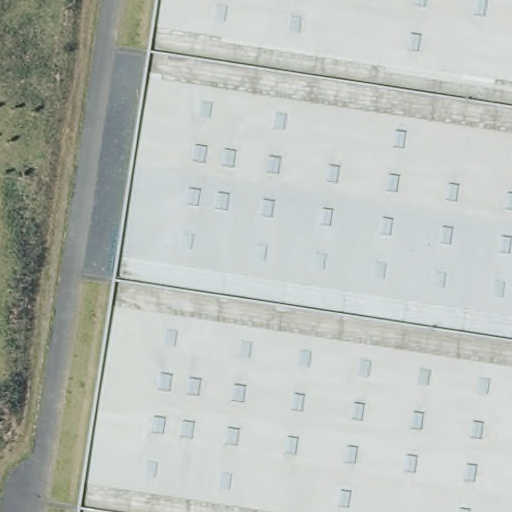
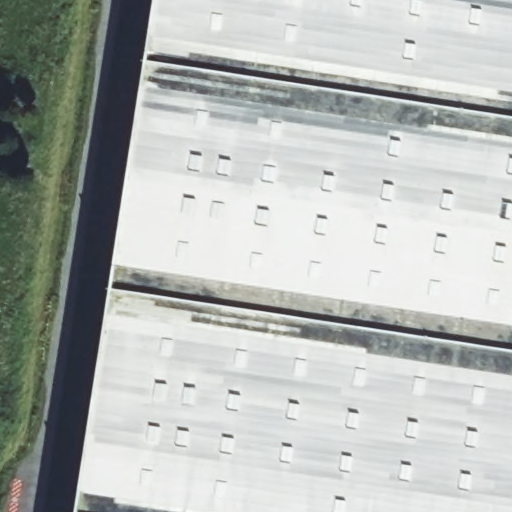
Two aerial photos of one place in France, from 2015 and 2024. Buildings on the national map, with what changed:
unchanged [(512,0),(512,512),(83,512),(162,0),(512,0)]

